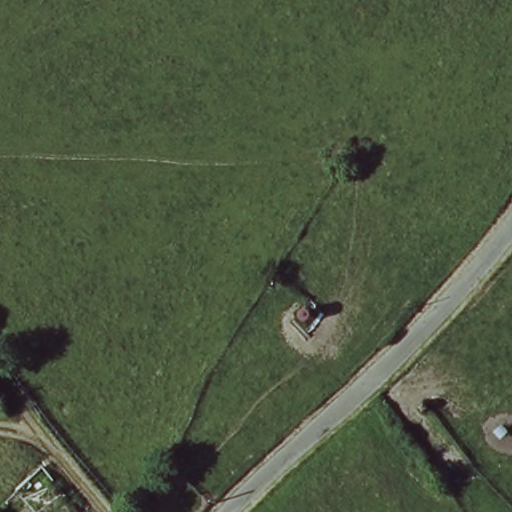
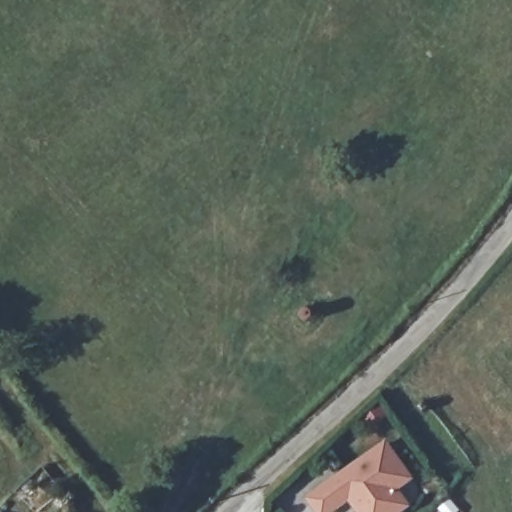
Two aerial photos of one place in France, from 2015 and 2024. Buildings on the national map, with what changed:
new [(414,478),(400,490),(412,507),(404,512),(355,512),(349,502),(334,512),(314,512),(304,498),(387,439),(414,478)]

